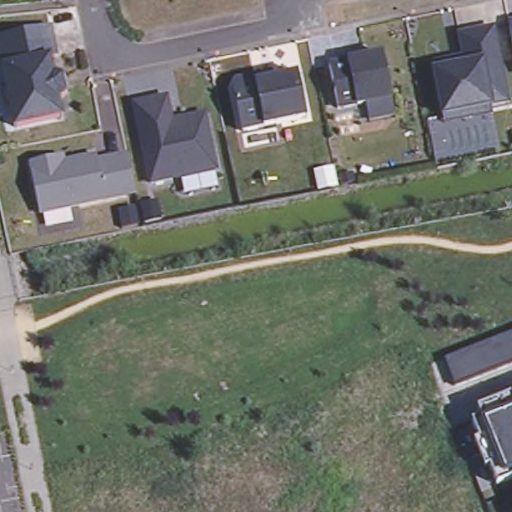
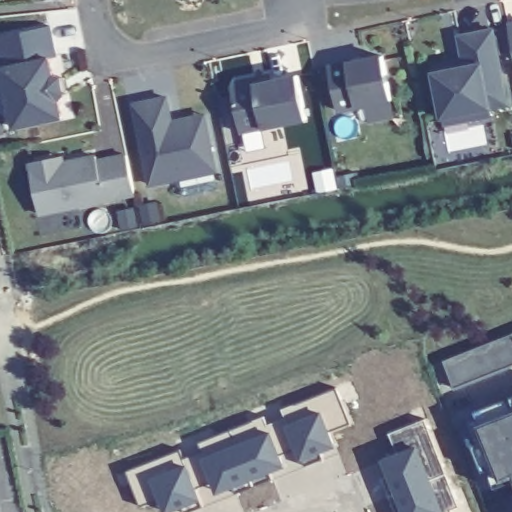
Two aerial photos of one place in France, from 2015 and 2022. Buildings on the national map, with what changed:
unchanged [(512,39),(509,21),(512,20),(512,39)]
unchanged [(434,70),(466,63),(459,32),(493,25),(508,100),(491,104),(489,96),(464,101),(467,109),(443,114),(434,70)]
unchanged [(56,26),(63,57),(55,59),(59,75),(66,78),(70,95),(64,100),(68,117),(19,127),(15,109),(10,106),(7,90),(11,86),(1,37),(56,26)]
unchanged [(343,112),(334,69),(388,57),(397,101),(343,112)]
unchanged [(233,90),(236,82),(251,80),(257,85),(299,76),(308,120),(242,134),(233,90)]
unchanged [(152,184),(136,104),(168,97),(173,121),(206,115),(208,120),(218,170),(152,184)]
unchanged [(30,162),(54,157),(63,156),(64,163),(98,156),(99,161),(128,155),(136,194),(41,214),(30,162)]
unchanged [(512,365),(454,386),(443,359),(512,333),(512,365)]
new [(181,459),(200,453),(198,445),(264,419),(266,427),(284,420),(282,412),(336,390),(349,425),(326,432),(333,448),(296,462),(292,450),(276,455),(283,468),(216,495),(209,482),(191,488),(198,503),(168,512),(162,512),(158,502),(140,506),(125,473),(178,453),(181,459)]
unchanged [(475,410),(512,397),(512,483),(494,489),(471,422),(477,418),(475,410)]
new [(450,510),(450,512),(398,512),(378,461),(395,456),(389,435),(426,420),(459,508),(450,510)]

